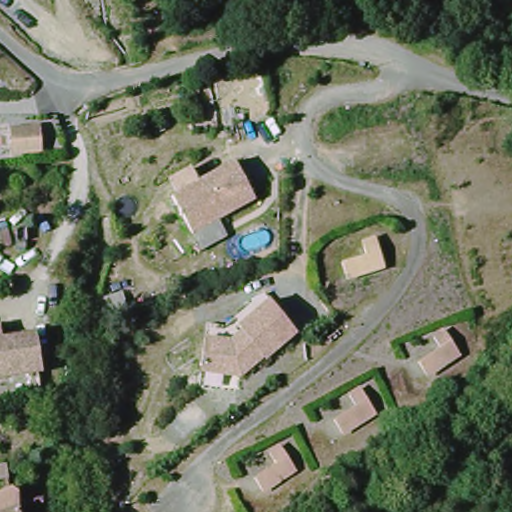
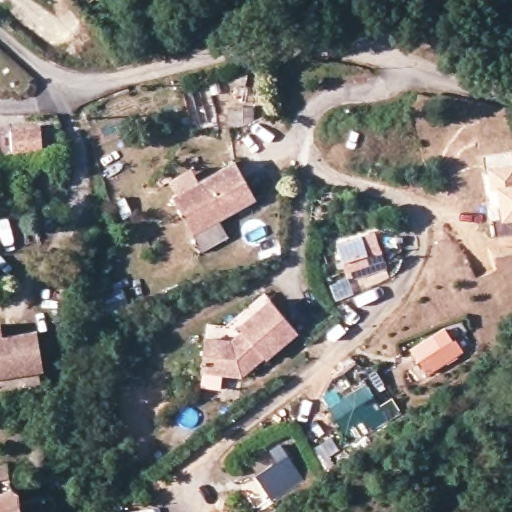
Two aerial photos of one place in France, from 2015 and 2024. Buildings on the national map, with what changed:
unchanged [(42,129),(43,154),(12,154),(12,129),(42,129)]
unchanged [(241,161),(262,197),(229,216),(238,234),(208,250),(199,232),(180,195),(241,161)]
new [(493,237),(491,220),(500,219),(496,189),(490,190),(486,169),(512,166),(512,235),(493,237)]
unchanged [(347,283),(342,263),(363,255),(356,239),(377,236),(389,268),(347,283)]
unchanged [(242,335),(248,329),(243,322),(278,298),(308,331),(276,358),(248,376),(208,373),(211,334),(242,335)]
unchanged [(5,341),(41,335),(47,375),(0,383),(0,328),(2,327),(5,341)]
unchanged [(444,331),(460,355),(430,375),(420,361),(440,348),(433,339),(444,331)]
unchanged [(360,390),(375,413),(343,435),(334,422),(355,407),(350,398),(360,390)]
unchanged [(285,448),(300,473),(267,495),(258,480),(281,465),(275,455),(285,448)]
unchanged [(0,483),(0,466),(3,482),(0,483)]
unchanged [(18,495),(22,504),(23,512),(0,512),(0,494),(10,492),(18,495)]

